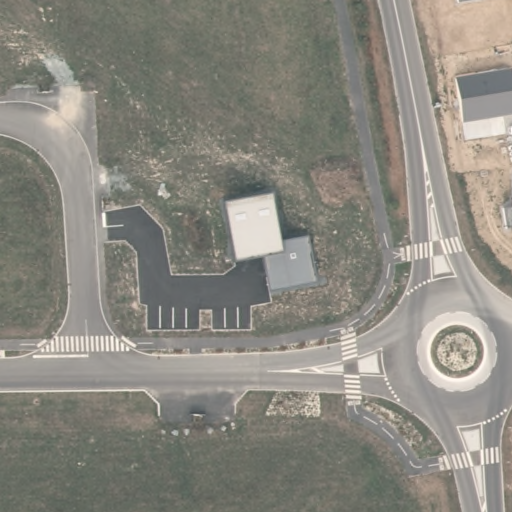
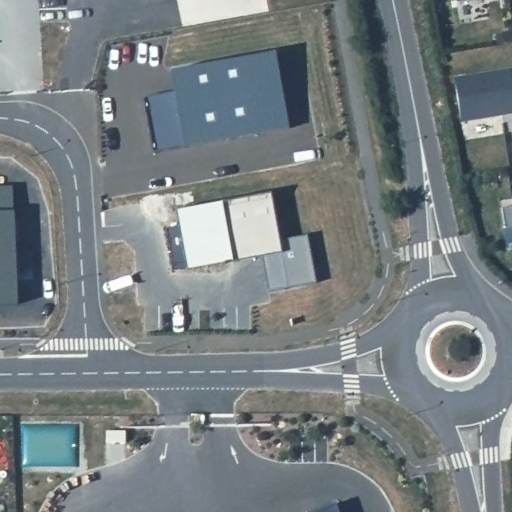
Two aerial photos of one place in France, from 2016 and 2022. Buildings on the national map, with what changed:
unchanged [(456,0),(472,0),(456,2),(456,0)]
new [(175,91),(171,71),(276,52),(290,129),(153,153),(143,97),(175,91)]
unchanged [(455,76),(508,67),(512,85),(512,113),(463,122),(455,76)]
unchanged [(271,190),(280,241),(306,235),(316,281),(267,290),(262,255),(234,261),(224,200),(271,190)]
unchanged [(502,207),(512,205),(512,226),(506,227),(502,207)]
new [(339,512),(312,512),(336,503),(339,512)]

